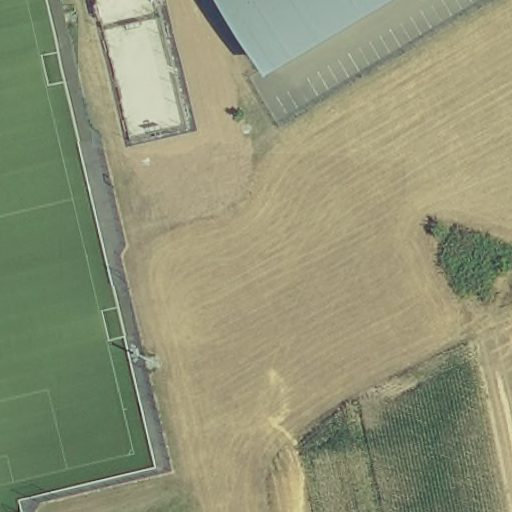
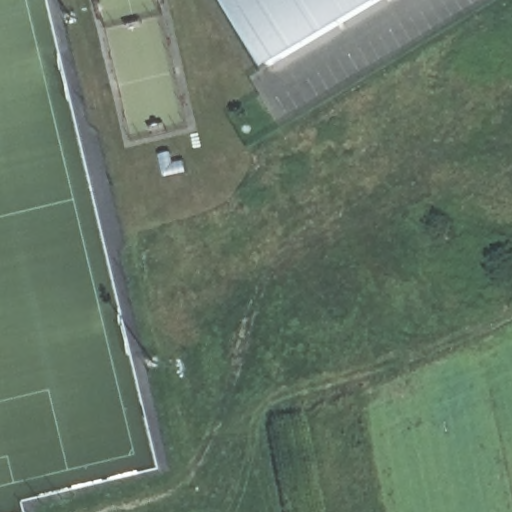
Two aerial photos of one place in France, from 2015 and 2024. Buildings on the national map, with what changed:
unchanged [(270,62),(233,0),(375,0),(270,62)]

